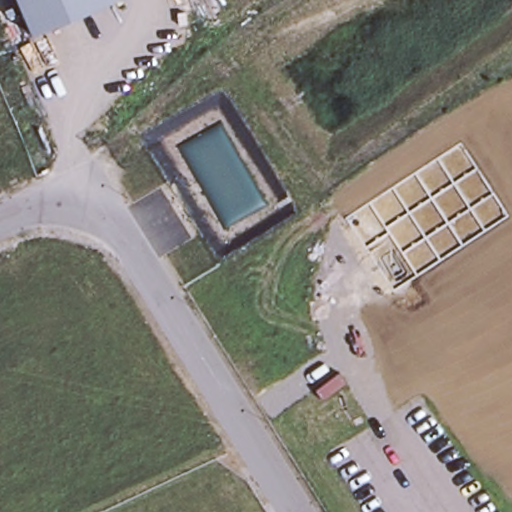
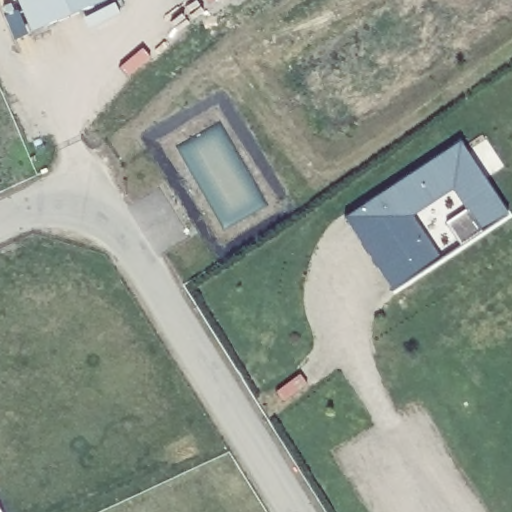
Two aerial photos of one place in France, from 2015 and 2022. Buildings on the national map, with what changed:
unchanged [(110,0),(31,34),(16,0),(110,0)]
new [(346,219),(460,144),(508,217),(461,247),(446,224),(466,211),(453,191),(413,217),(441,260),(394,292),(346,219)]

